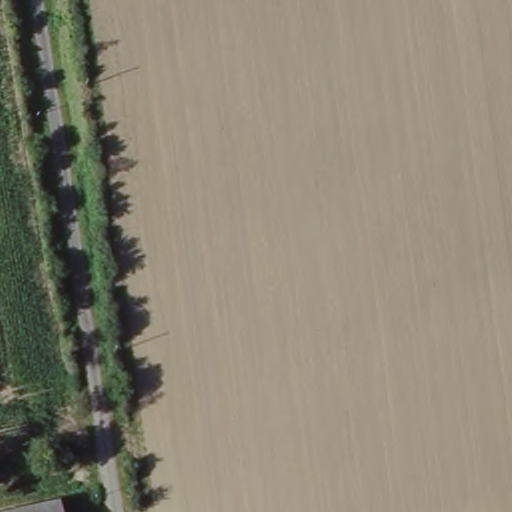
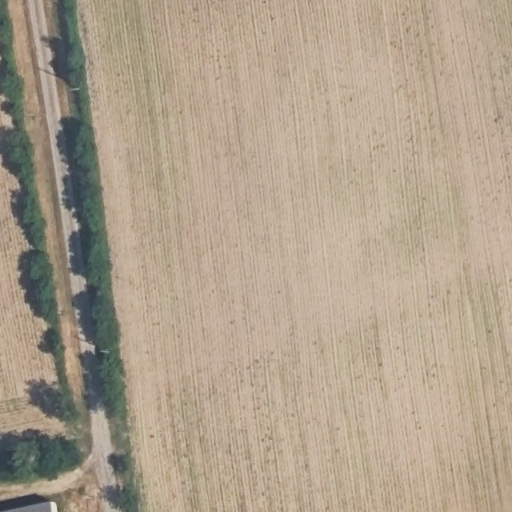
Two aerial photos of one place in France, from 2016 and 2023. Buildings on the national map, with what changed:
unchanged [(64,512),(28,512),(62,505),(64,512)]

